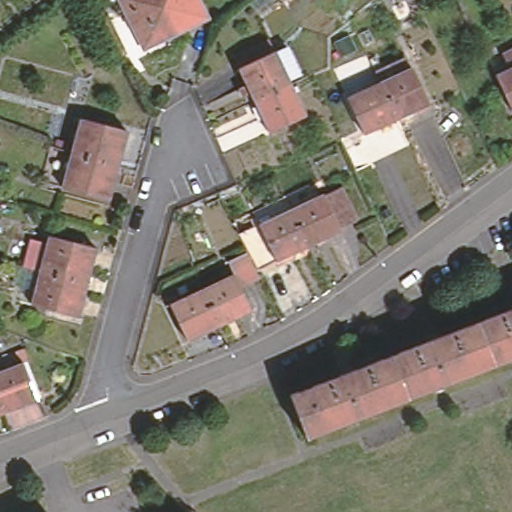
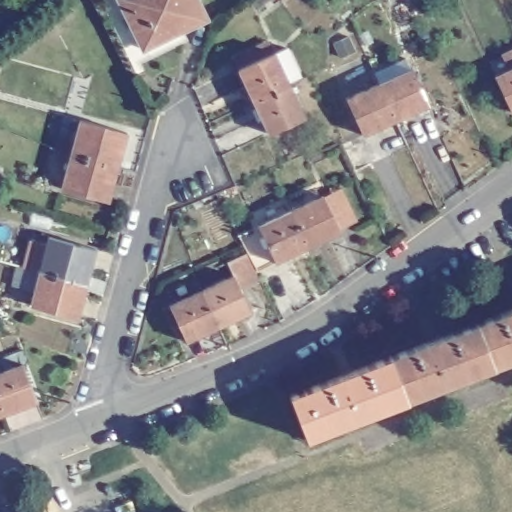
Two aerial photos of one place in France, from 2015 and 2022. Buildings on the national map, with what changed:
unchanged [(146,41),(137,45),(114,0),(191,0),(199,15),(183,23),(188,33),(152,51),(146,41)]
unchanged [(395,26),(383,0),(408,0),(415,17),(395,26)]
unchanged [(271,48),(282,43),(295,71),(284,76),(285,80),(249,98),(234,66),(271,48)]
unchanged [(512,46),(512,107),(507,109),(491,72),(485,59),(512,46)]
unchanged [(342,95),(374,80),(365,60),(370,56),(375,66),(401,55),(405,65),(422,101),(391,116),(358,131),(342,95)]
unchanged [(285,80),(300,111),(264,129),(249,98),(285,80)]
unchanged [(57,181),(66,146),(43,138),(46,129),(68,136),(75,112),(121,126),(112,160),(104,194),(57,181)]
unchanged [(280,211),(276,202),(292,195),(289,189),(314,178),(320,191),(328,188),(345,223),(313,238),(281,254),(264,218),(280,211)]
unchanged [(31,299),(40,264),(23,260),(31,234),(47,239),(49,230),(96,242),(87,276),(78,311),(31,299)]
unchanged [(215,325),(198,288),(230,274),(224,260),(243,251),(255,275),(235,284),(247,309),(215,325)]
unchanged [(183,340),(166,303),(198,288),(215,325),(183,340)]
unchanged [(304,436),(287,393),(512,304),(512,354),(304,436)]
unchanged [(14,352),(18,363),(13,365),(28,402),(0,413),(0,357),(14,352)]

